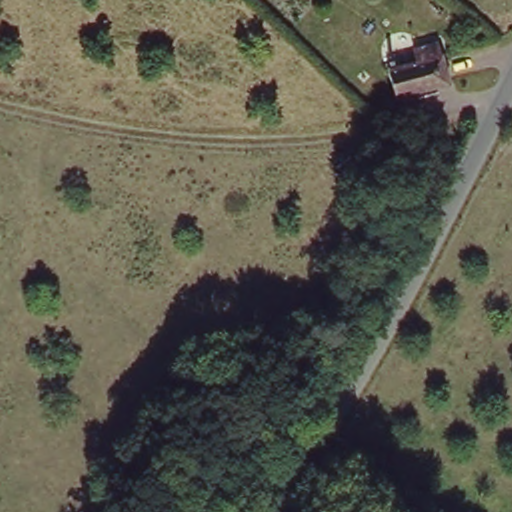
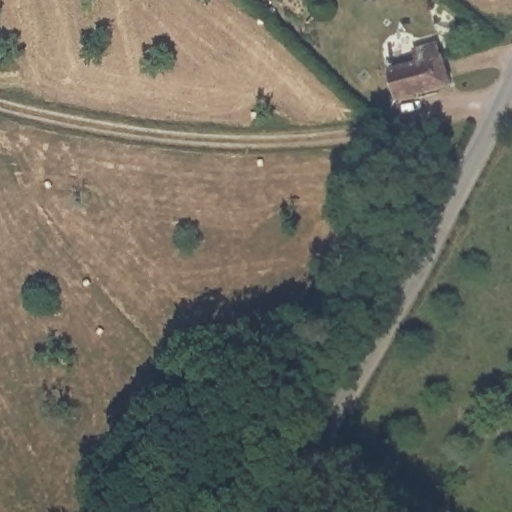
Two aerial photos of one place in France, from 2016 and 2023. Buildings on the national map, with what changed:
unchanged [(398,99),(390,64),(420,56),(417,44),(441,39),(452,87),(398,99)]

